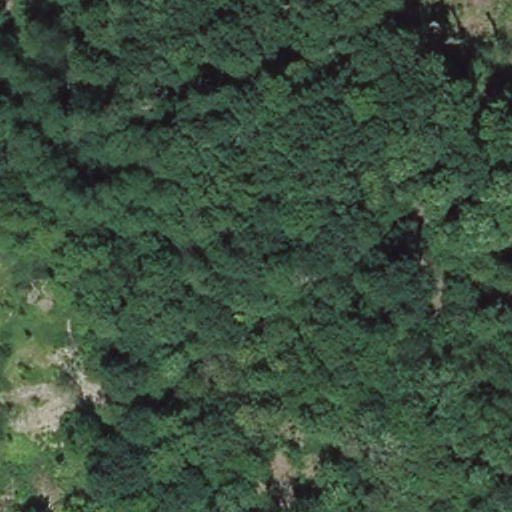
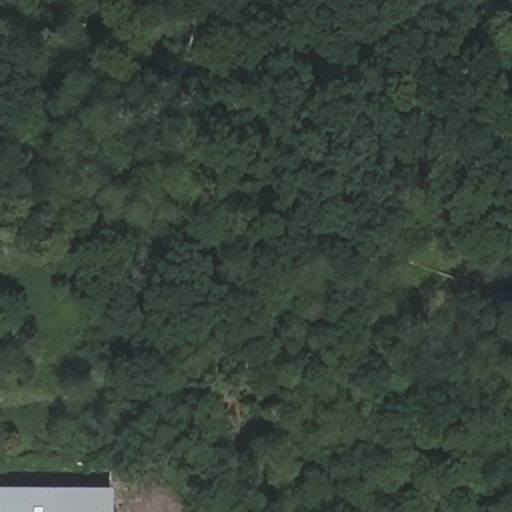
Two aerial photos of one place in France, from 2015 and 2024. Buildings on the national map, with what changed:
new [(112,489),(112,512),(0,512),(0,488),(112,489)]

